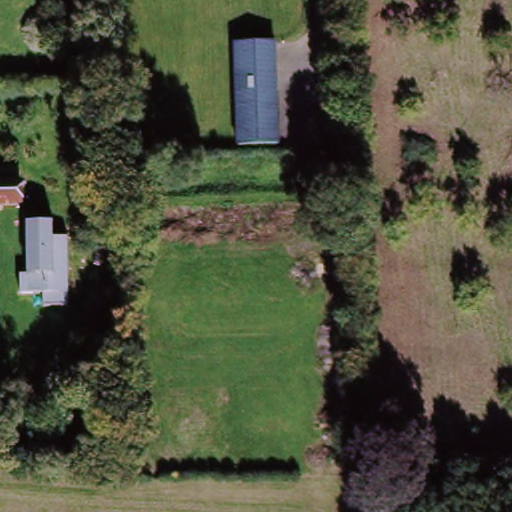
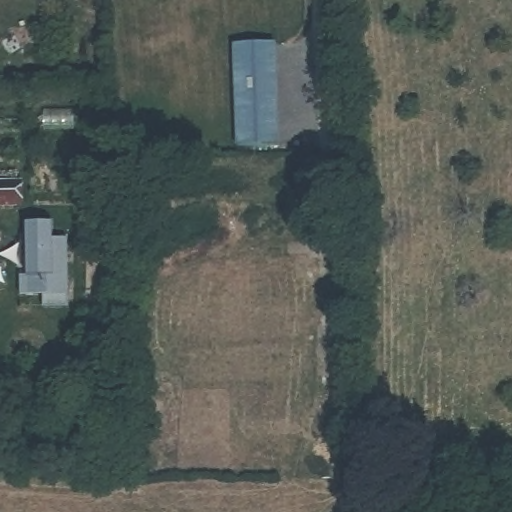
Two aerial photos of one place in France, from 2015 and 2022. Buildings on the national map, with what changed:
unchanged [(281,150),(240,150),(240,49),(280,49),(281,150)]
unchanged [(0,215),(0,192),(10,192),(11,215),(0,215)]
unchanged [(55,224),(54,241),(70,241),(70,309),(45,309),(45,296),(20,296),(21,278),(29,277),(27,224),(55,224)]

